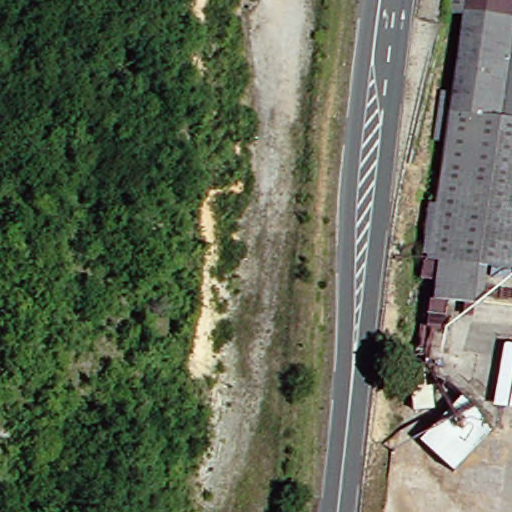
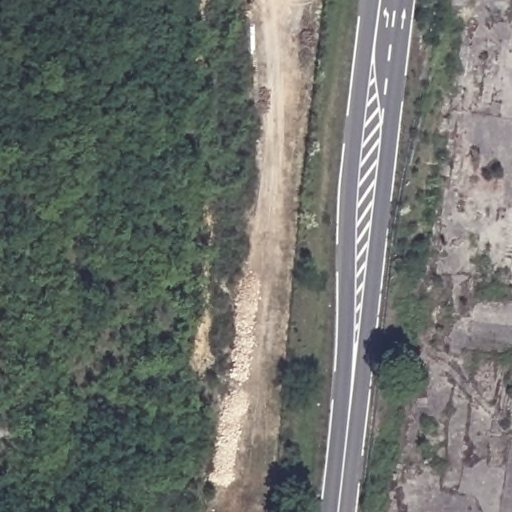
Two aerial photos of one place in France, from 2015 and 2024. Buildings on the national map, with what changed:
demolished [(474,262),(467,305),(425,298),(430,261),(422,261),(420,281),(406,280),(417,202),(429,204),(438,140),(425,140),(432,89),(447,91),(457,11),(442,12),(443,0),(512,0),(512,270),(474,262)]
demolished [(491,412),(500,345),(512,347),(512,415),(491,412)]

